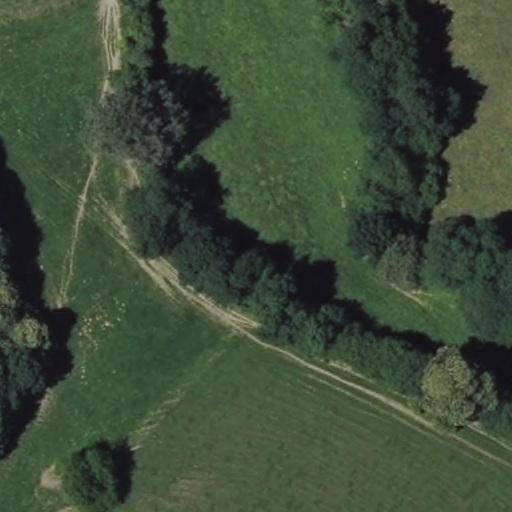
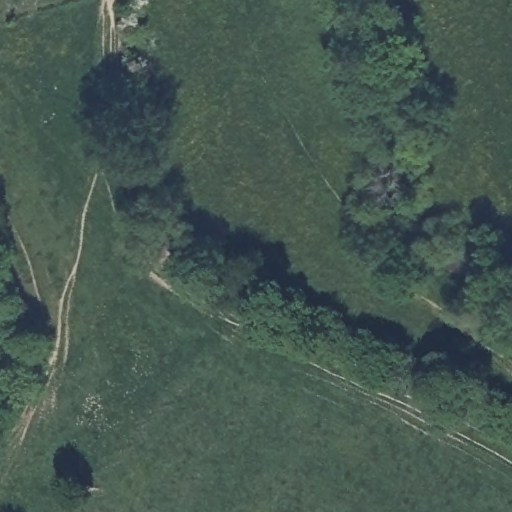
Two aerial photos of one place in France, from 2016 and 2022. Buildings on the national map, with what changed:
[]

